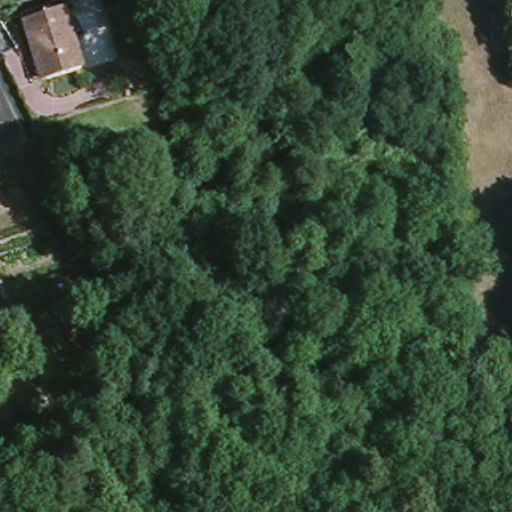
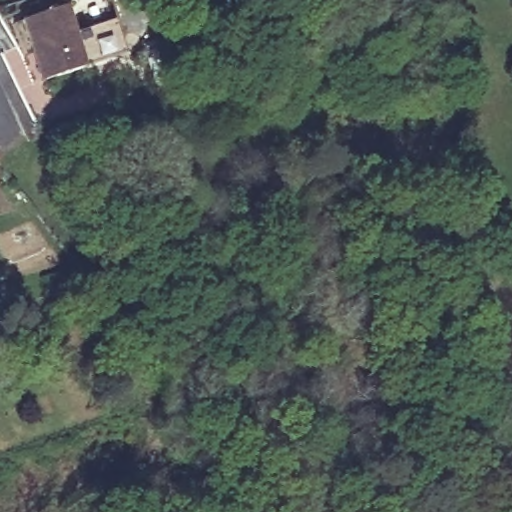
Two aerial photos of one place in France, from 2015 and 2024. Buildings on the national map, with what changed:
unchanged [(84,74),(49,85),(40,57),(35,59),(25,26),(65,14),(84,74)]
unchanged [(148,41),(165,85),(155,88),(154,88),(138,45),(148,41)]

